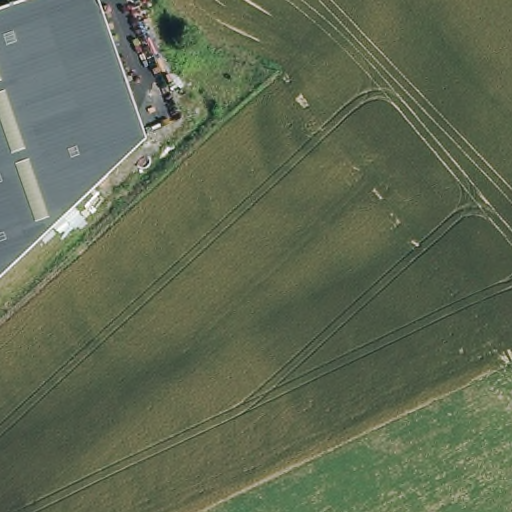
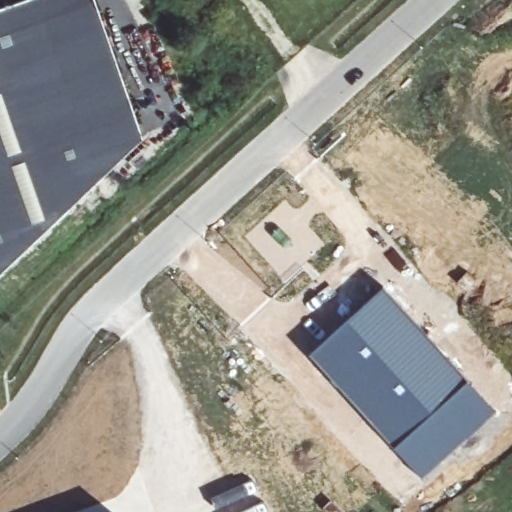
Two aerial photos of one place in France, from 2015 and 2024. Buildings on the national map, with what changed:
unchanged [(0,270),(0,3),(9,0),(96,0),(143,132),(0,270)]
new [(310,352),(383,287),(496,411),(423,476),(310,352)]

